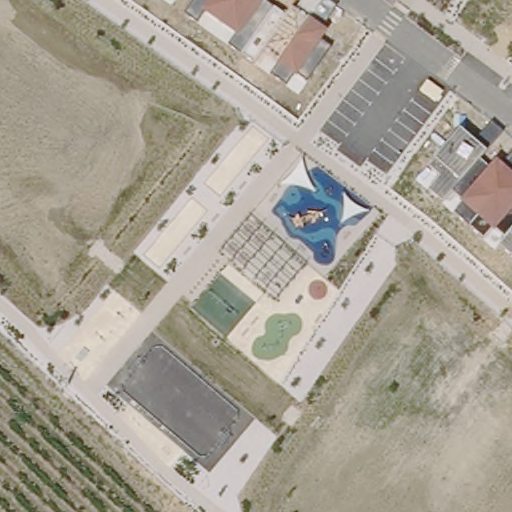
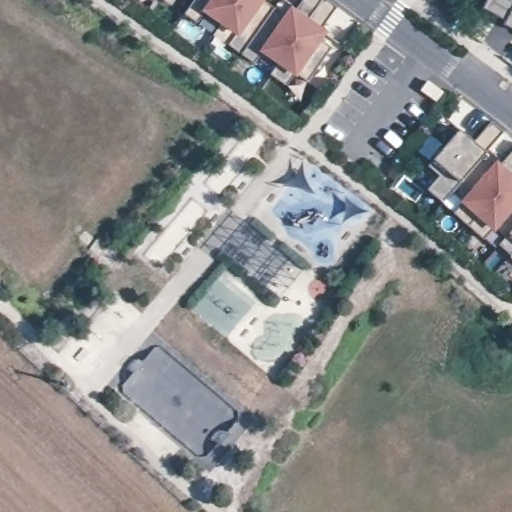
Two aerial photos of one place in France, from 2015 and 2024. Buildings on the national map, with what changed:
unchanged [(269,0),(288,12),(290,8),(296,12),(305,0),(326,0),(336,6),(324,28),(328,33),(321,42),(329,48),(306,81),(298,76),(295,80),(291,78),(286,85),(272,75),(278,65),(263,54),(253,65),(229,45),(235,37),(203,13),(197,23),(186,13),(195,0),(269,0)]
new [(512,0),(512,18),(509,16),(507,19),(493,10),(496,6),(487,0),(512,0)]
unchanged [(440,177),(430,166),(461,130),(474,143),(492,123),(504,132),(479,161),(488,169),(492,163),(498,167),(512,153),(512,254),(510,256),(500,245),(506,238),(494,228),(482,240),(454,213),(460,208),(457,204),(462,199),(452,190),(442,201),(429,191),(440,177)]

